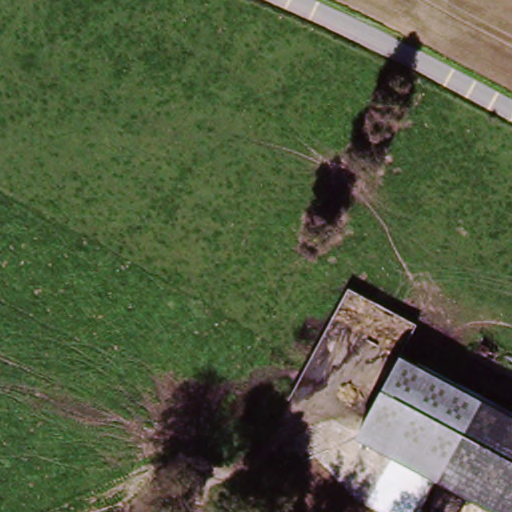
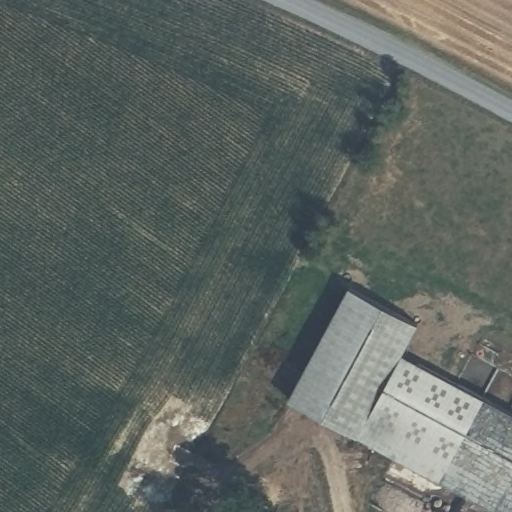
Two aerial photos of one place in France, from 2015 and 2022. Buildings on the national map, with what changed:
new [(356,437),(287,400),(348,285),(419,322),(401,353),(356,437)]
unchanged [(356,437),(401,353),(512,413),(512,425),(475,407),(439,482),(356,437)]
unchanged [(437,487),(475,407),(512,425),(512,512),(488,512),(437,487)]

